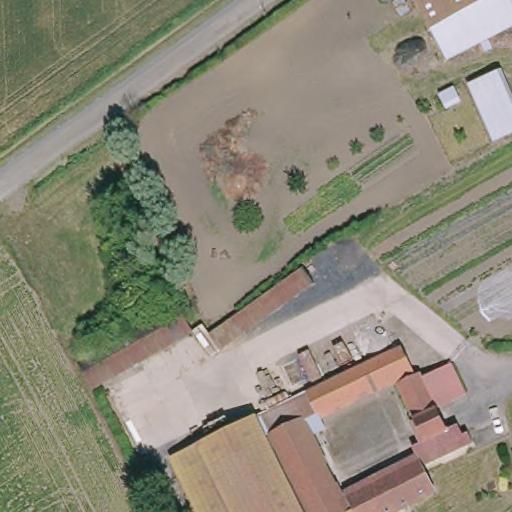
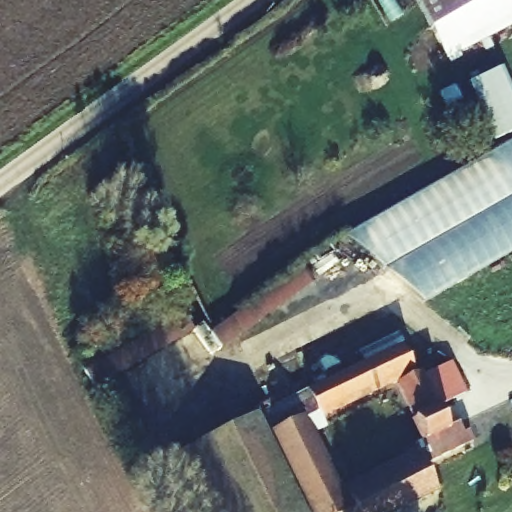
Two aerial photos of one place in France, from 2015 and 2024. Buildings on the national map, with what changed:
unchanged [(478,6),(436,28),(422,0),(490,0),(478,6)]
unchanged [(478,6),(490,0),(512,0),(512,28),(452,59),(436,28),(478,6)]
unchanged [(512,93),(512,132),(495,141),(470,84),(502,69),(512,93)]
new [(423,303),(342,236),(512,139),(512,252),(423,303)]
unchanged [(199,341),(203,338),(302,267),(315,284),(210,357),(203,347),(199,341)]
unchanged [(177,303),(192,332),(92,391),(77,361),(177,303)]
unchanged [(411,446),(423,439),(397,385),(420,374),(422,377),(452,363),(467,393),(438,408),(448,428),(457,423),(461,429),(460,430),(462,434),(468,432),(472,441),(422,466),(435,492),(394,512),(309,512),(262,414),(402,347),(414,370),(320,415),(327,428),(310,435),(341,497),(345,494),(417,457),(411,446)]
unchanged [(262,414),(309,512),(199,512),(172,457),(261,412),(262,414)]

